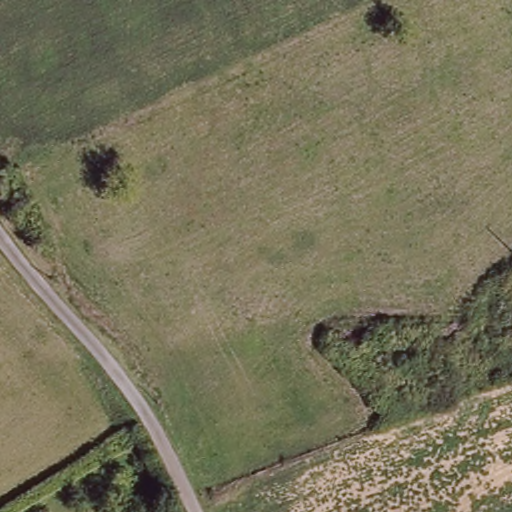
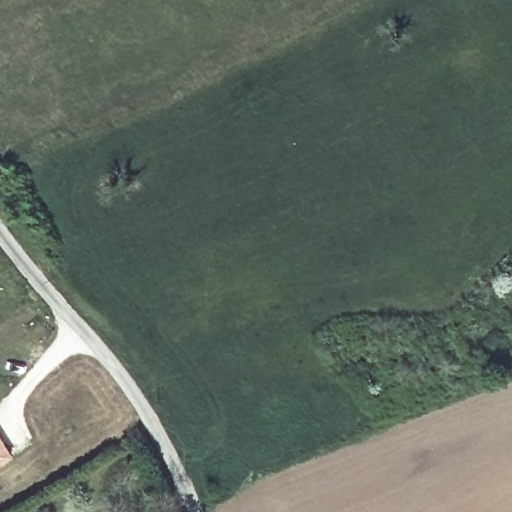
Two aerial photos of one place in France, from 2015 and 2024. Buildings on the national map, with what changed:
unchanged [(13,205),(3,182),(20,175),(25,188),(20,192),(24,201),(13,205)]
new [(10,455),(0,462),(0,439),(10,455)]

